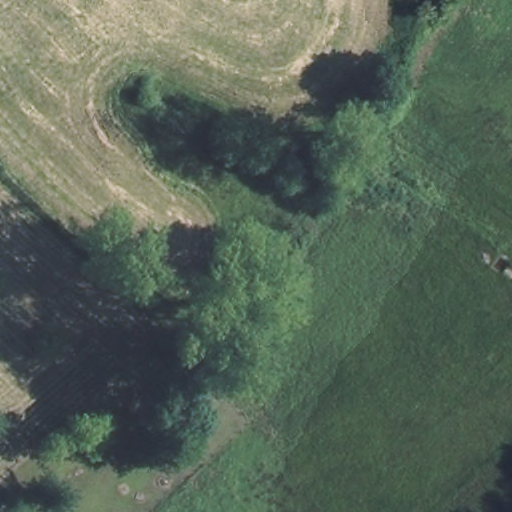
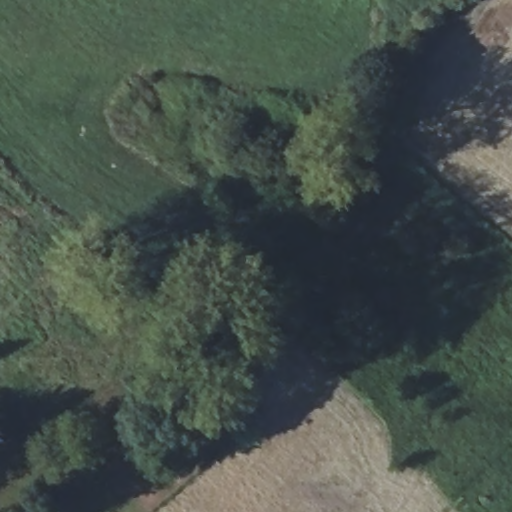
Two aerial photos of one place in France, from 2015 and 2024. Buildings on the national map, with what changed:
[]

